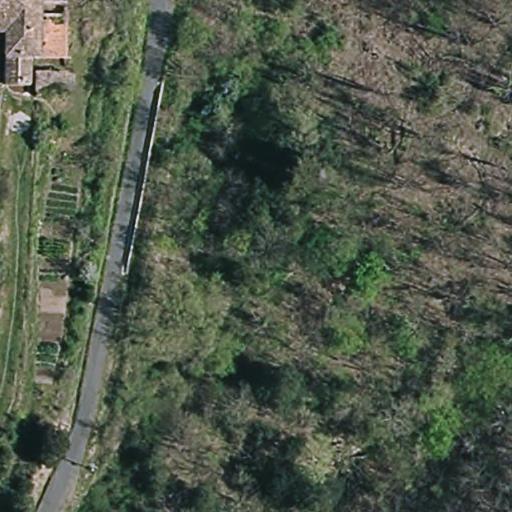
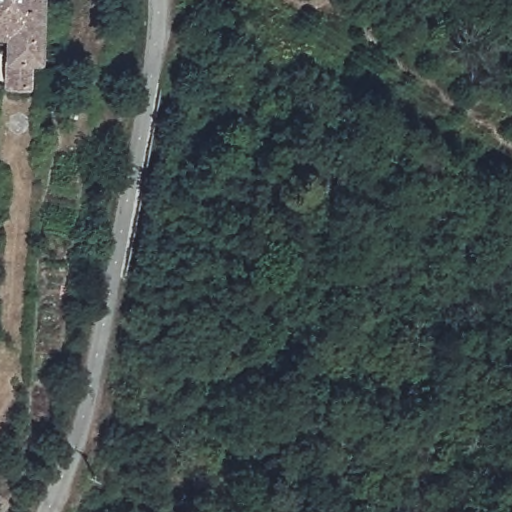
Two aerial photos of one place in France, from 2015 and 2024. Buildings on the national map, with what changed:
unchanged [(5,84),(4,34),(0,34),(0,0),(41,0),(42,6),(74,7),(74,56),(34,57),(35,84),(5,84)]
unchanged [(74,69),(74,99),(46,100),(45,85),(44,69),(74,69)]

